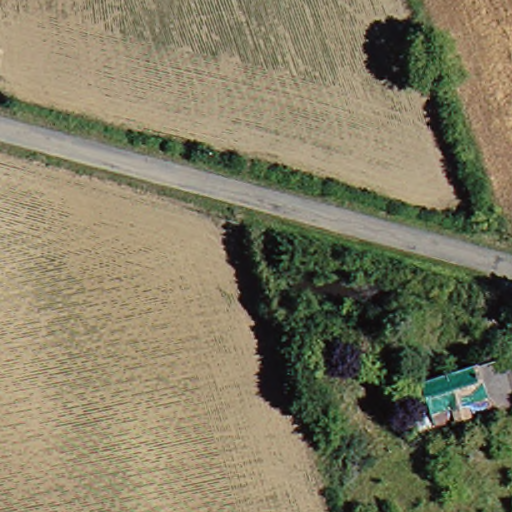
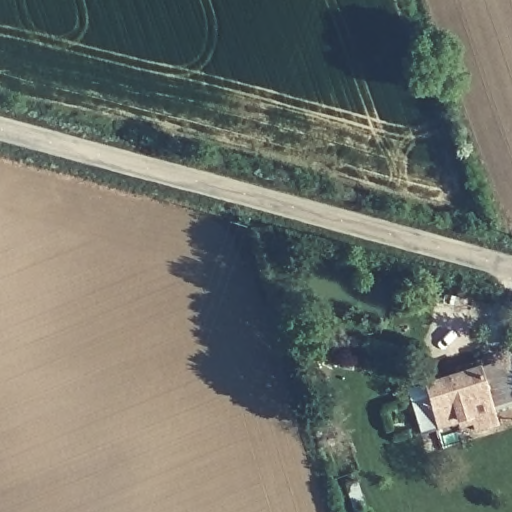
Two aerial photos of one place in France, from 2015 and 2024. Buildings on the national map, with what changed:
unchanged [(510,406),(433,431),(416,387),(495,362),(510,406)]

